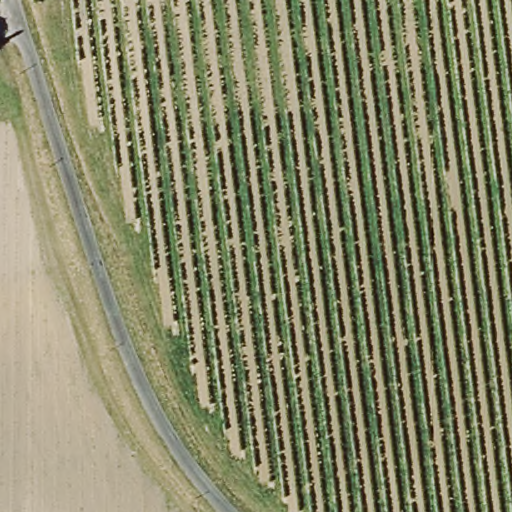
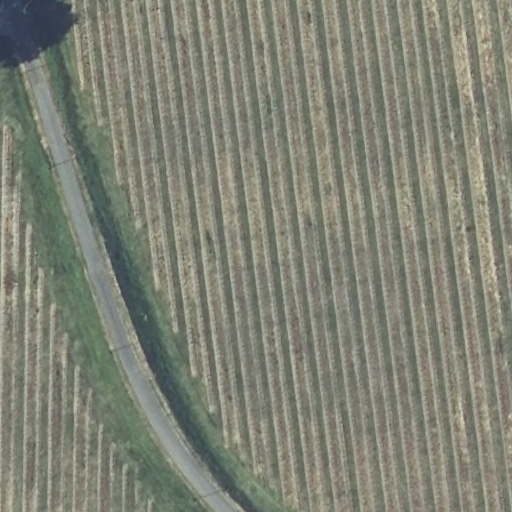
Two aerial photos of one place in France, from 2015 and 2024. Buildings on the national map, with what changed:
[]

